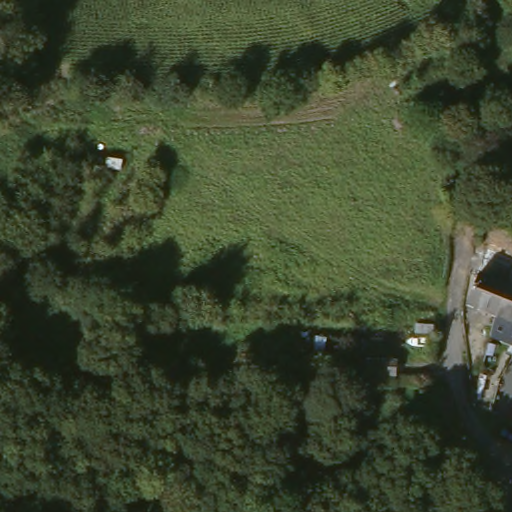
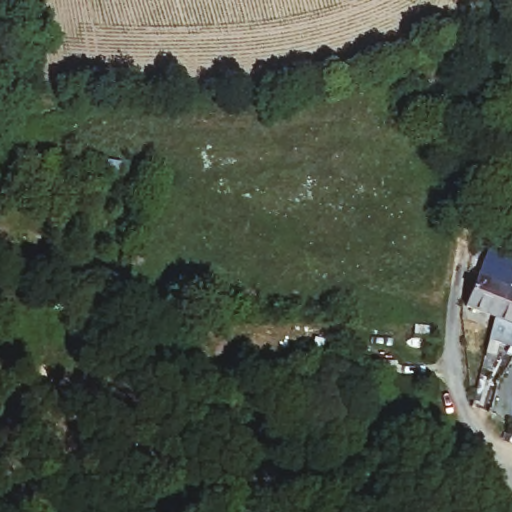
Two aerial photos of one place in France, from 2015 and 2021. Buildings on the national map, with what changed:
unchanged [(475,310),(494,260),(512,267),(512,304),(504,323),(475,310)]
unchanged [(504,323),(512,304),(512,326),(504,323)]
unchanged [(432,335),(414,331),(415,325),(435,329),(432,335)]
unchanged [(396,362),(395,377),(365,375),(365,361),(396,362)]

